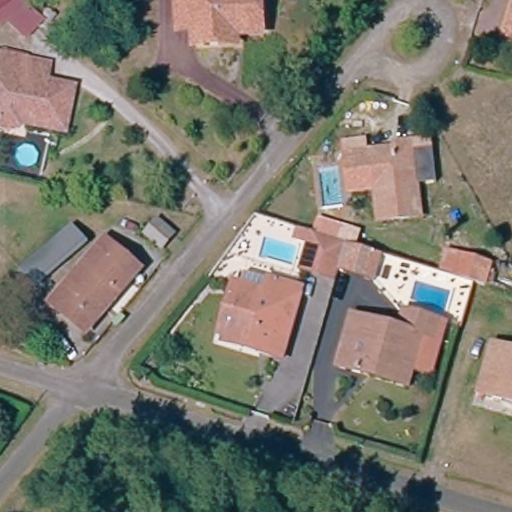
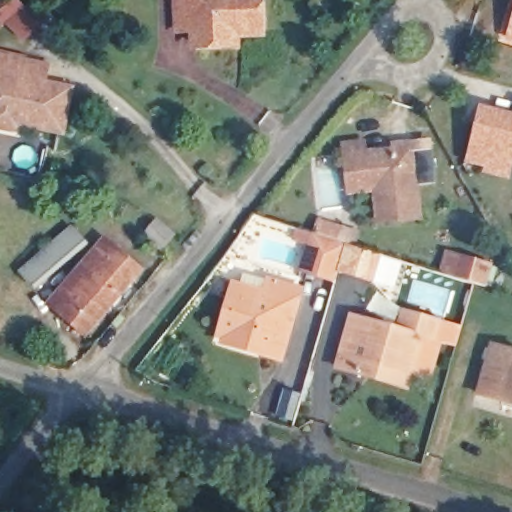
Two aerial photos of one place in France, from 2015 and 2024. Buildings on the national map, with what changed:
unchanged [(34,4),(27,9),(4,24),(0,18),(0,0),(30,0),(34,4)]
unchanged [(193,49),(193,31),(181,31),(181,0),(256,0),(256,39),(230,38),(230,49),(214,49),(193,49)]
unchanged [(44,63),(47,68),(45,84),(57,86),(72,89),(69,109),(66,134),(22,127),(14,134),(0,133),(0,54),(44,63)]
new [(512,180),(511,182),(483,177),(485,168),(466,164),(480,104),(512,111),(512,180)]
unchanged [(396,157),(395,149),(413,146),(428,145),(429,160),(414,161),(420,221),(379,224),(376,190),(371,191),(370,178),(368,159),(396,157)]
unchanged [(173,239),(163,250),(147,237),(157,225),(173,239)]
unchanged [(22,272),(35,259),(53,240),(66,227),(80,239),(67,253),(49,273),(36,285),(22,272)]
unchanged [(348,269),(335,266),(330,283),(297,273),(310,235),(341,245),(354,249),(364,253),(359,273),(348,269)]
unchanged [(89,327),(68,310),(61,319),(47,308),(93,253),(105,264),(113,254),(135,272),(89,327)]
unchanged [(464,257),(492,266),(486,285),(476,282),(458,276),(464,257)]
unchanged [(233,343),(222,339),(233,300),(238,283),(268,292),(271,284),(300,293),(278,367),(263,363),(230,353),(233,343)]
unchanged [(357,379),(328,369),(340,331),(344,319),(366,327),(397,335),(403,315),(437,325),(430,347),(419,384),(409,381),(405,393),(357,379)]
unchanged [(512,402),(480,393),(494,344),(512,350),(512,402)]

